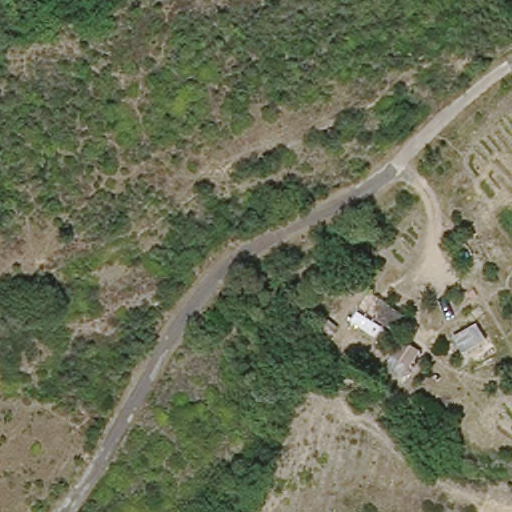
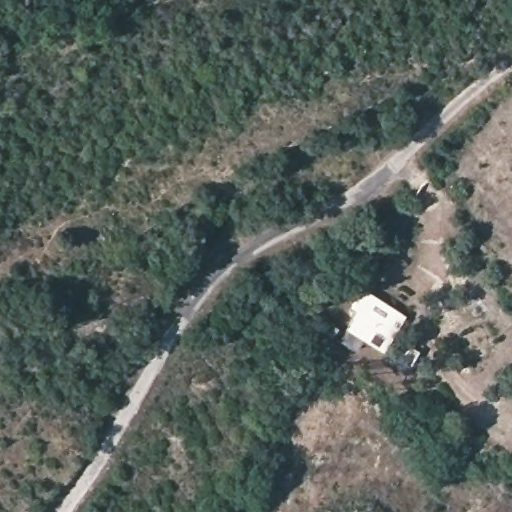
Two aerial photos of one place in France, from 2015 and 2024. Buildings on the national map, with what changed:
unchanged [(367,292),(395,308),(376,340),(348,323),(367,292)]

